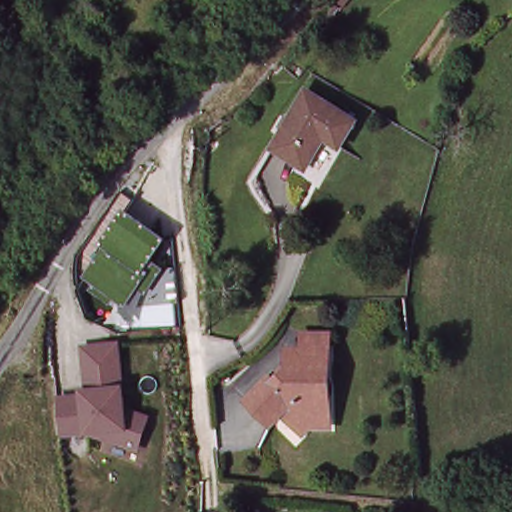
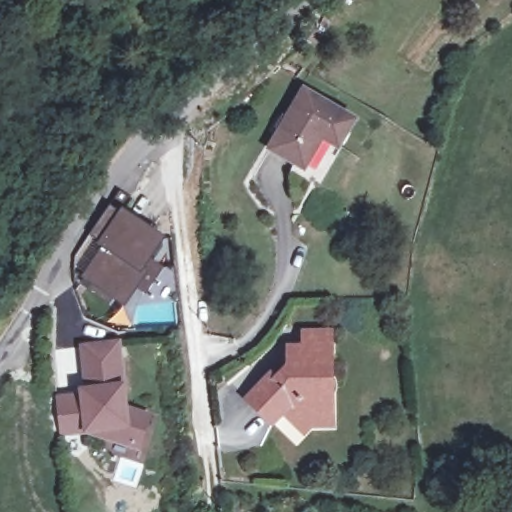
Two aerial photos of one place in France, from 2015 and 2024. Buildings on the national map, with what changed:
unchanged [(342,147),(325,137),(306,168),(272,148),(299,101),(305,91),(326,102),(357,121),(342,147)]
unchanged [(150,260),(163,269),(145,295),(142,293),(135,313),(113,298),(109,305),(87,291),(91,284),(80,277),(101,247),(97,245),(122,208),(166,238),(150,260)]
unchanged [(342,430),(316,432),(303,437),(286,419),(274,425),(247,397),(285,345),(305,342),(304,330),(339,330),(342,430)]
unchanged [(141,446),(86,430),(59,434),(55,393),(77,389),(77,385),(84,383),(80,342),(121,339),(127,403),(152,410),(141,446)]

